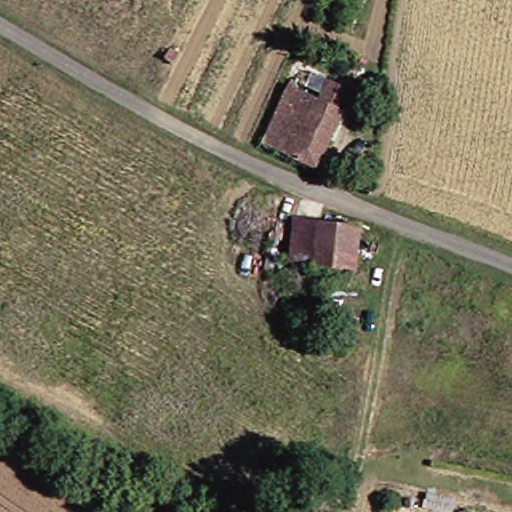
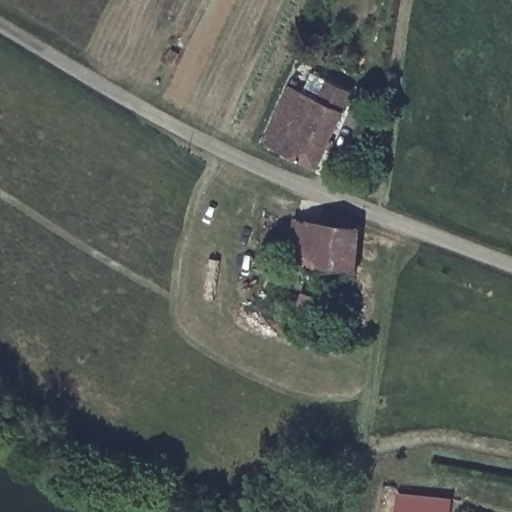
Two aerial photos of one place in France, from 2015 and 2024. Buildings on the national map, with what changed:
unchanged [(322,80),(344,92),(306,169),(255,144),(284,87),(312,99),(322,80)]
unchanged [(283,263),(288,221),(354,230),(352,272),(301,266),(283,263)]
new [(452,512),(397,512),(400,491),(455,496),(452,512)]

